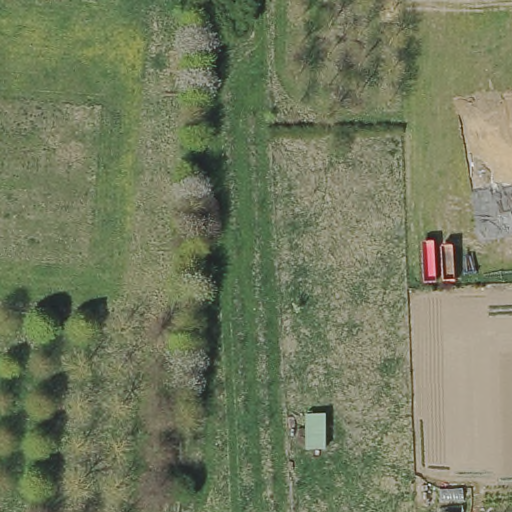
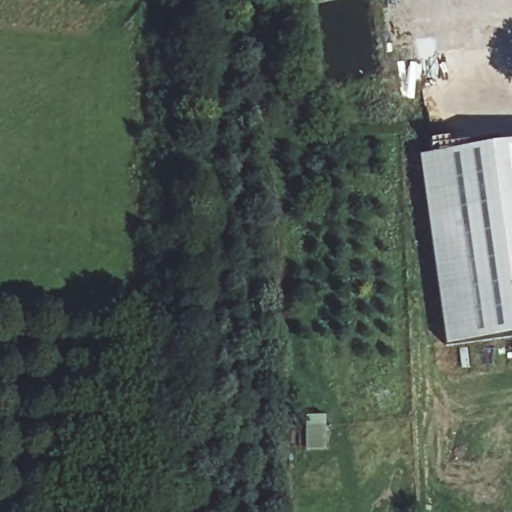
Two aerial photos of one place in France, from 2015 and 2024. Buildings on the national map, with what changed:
new [(445,348),(418,156),(512,143),(512,338),(445,348)]
unchanged [(307,448),(307,412),(330,411),(328,447),(307,448)]

